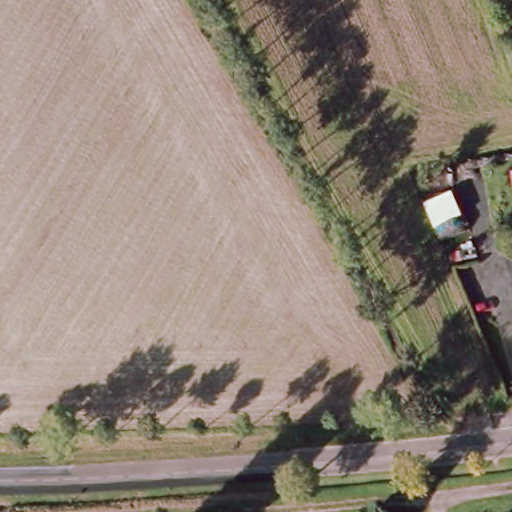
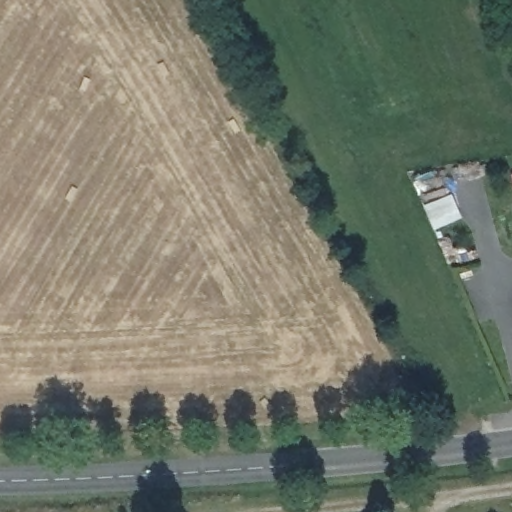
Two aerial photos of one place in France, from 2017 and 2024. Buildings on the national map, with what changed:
unchanged [(419,188),(448,180),(455,197),(463,222),(435,232),(423,207),(419,188)]

